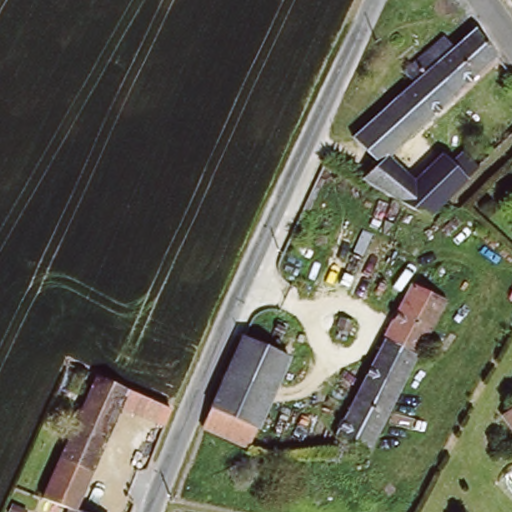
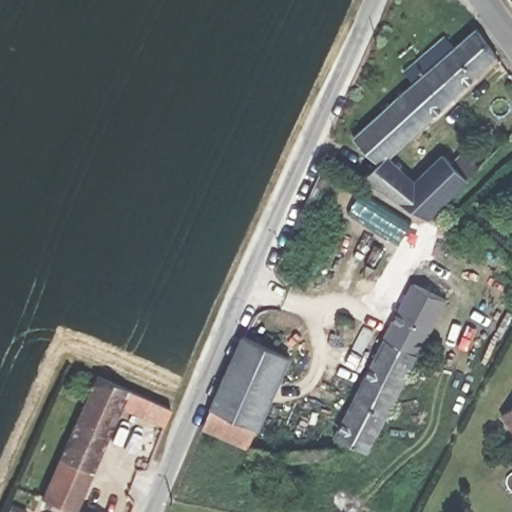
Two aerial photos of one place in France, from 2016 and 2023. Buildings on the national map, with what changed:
unchanged [(358,136),(420,85),(412,74),(453,40),(462,51),(485,32),(506,59),(380,159),(358,136)]
unchanged [(435,221),(375,185),(360,175),(380,159),(425,185),(451,160),(474,184),(452,205),(435,221)]
unchanged [(447,302),(361,449),(331,429),(415,284),(447,302)]
unchanged [(247,454),(200,437),(237,345),(244,329),(246,324),(278,338),(270,359),(285,365),(247,454)]
unchanged [(175,412),(167,433),(123,412),(78,512),(72,512),(44,500),(50,488),(100,377),(102,375),(175,412)]
unchanged [(512,406),(512,429),(499,414),(512,406)]

